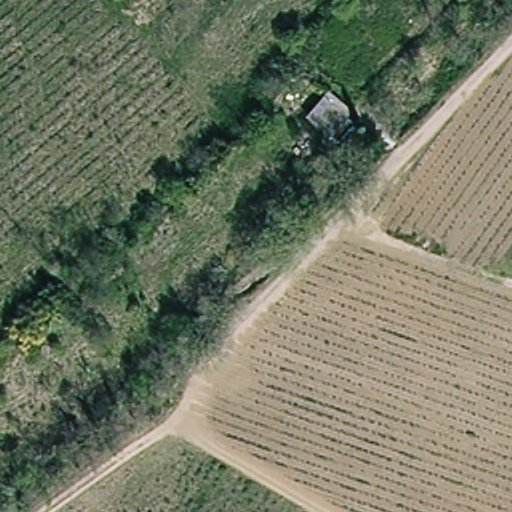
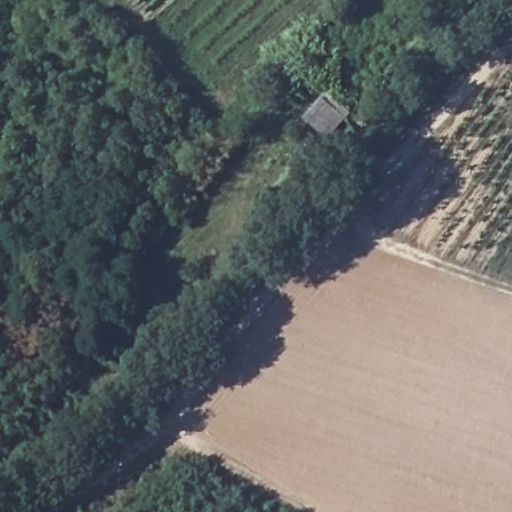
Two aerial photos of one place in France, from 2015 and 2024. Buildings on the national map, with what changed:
unchanged [(330,96),(355,114),(332,142),(308,122),(330,96)]

